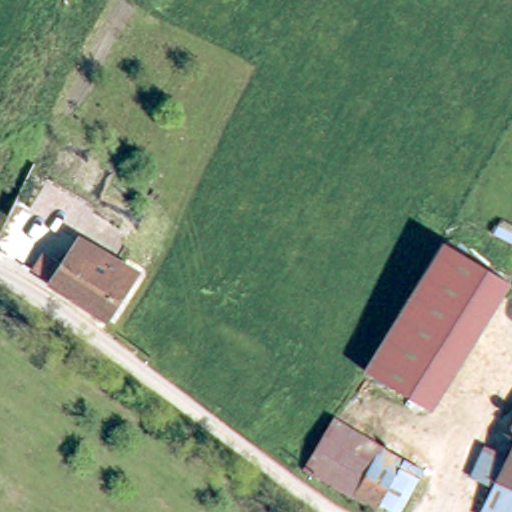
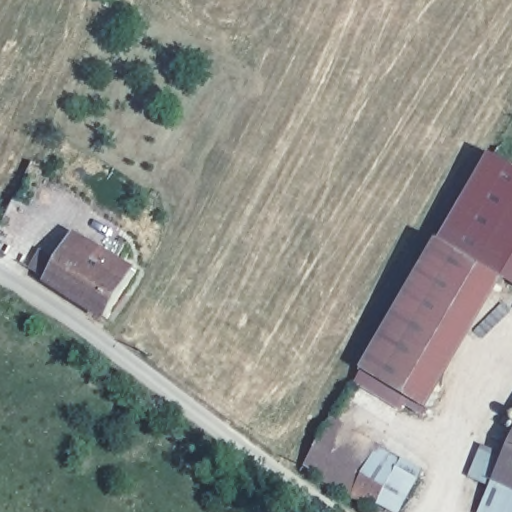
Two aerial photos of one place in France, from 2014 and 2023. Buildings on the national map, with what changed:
new [(507,287),(485,274),(440,246),(492,155),(512,167),(512,283),(510,282),(507,287)]
unchanged [(363,376),(440,247),(440,246),(485,274),(507,287),(429,416),(407,403),(363,376)]
unchanged [(133,282),(103,330),(42,289),(72,248),(133,282)]
unchanged [(335,428),(379,453),(353,500),(307,472),(335,428)]
unchanged [(487,488),(467,479),(476,459),(496,469),(512,435),(512,512),(476,512),(487,488)]
unchanged [(402,512),(383,512),(379,510),(377,512),(371,512),(353,502),(353,500),(379,453),(401,466),(399,474),(417,485),(402,512)]

